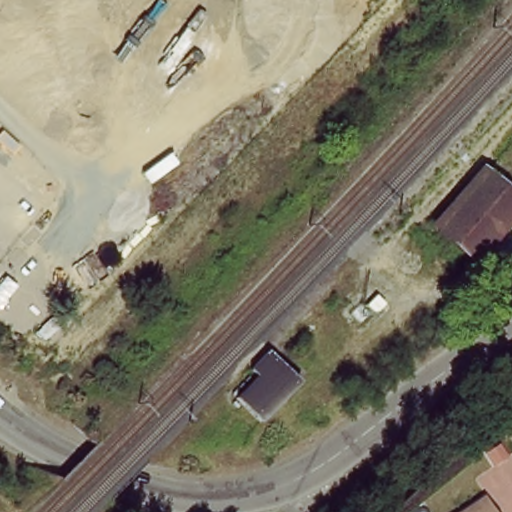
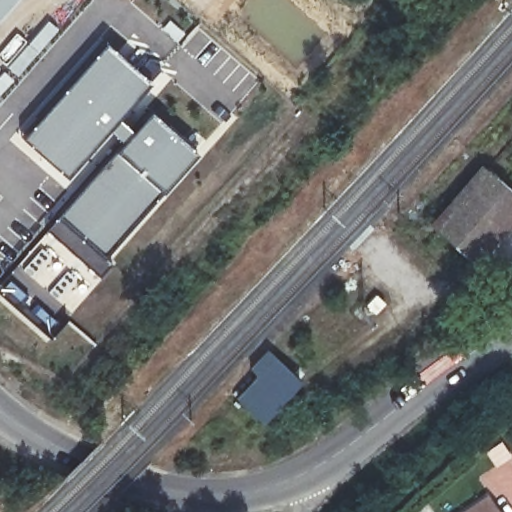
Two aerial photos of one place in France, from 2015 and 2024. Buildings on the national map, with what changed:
new [(0,12),(0,0),(10,0),(0,12)]
new [(47,20),(59,30),(19,77),(6,65),(47,20)]
new [(66,175),(21,137),(105,44),(148,81),(66,175)]
new [(162,191),(105,256),(112,262),(100,277),(45,230),(56,215),(118,147),(150,112),(196,152),(162,191)]
unchanged [(474,266),(430,225),(477,166),(512,195),(512,214),(474,266)]
unchanged [(301,390),(268,418),(235,391),(269,355),(301,390)]
unchanged [(498,512),(459,512),(484,494),(498,512)]

